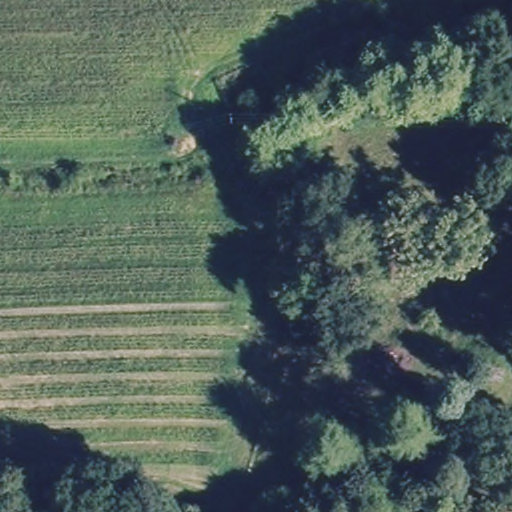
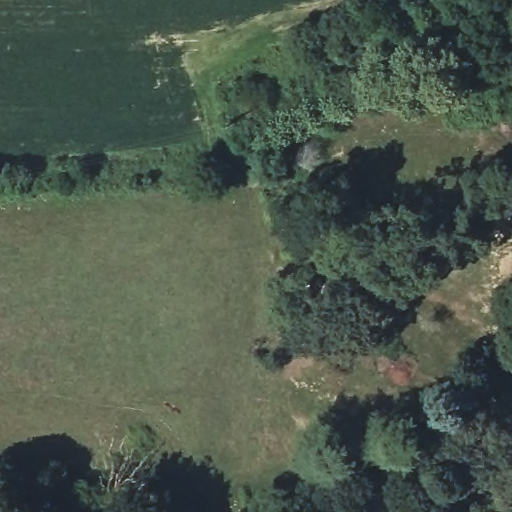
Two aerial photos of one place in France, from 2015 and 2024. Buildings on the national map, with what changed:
unchanged [(477,512),(512,501),(512,512),(477,512)]

